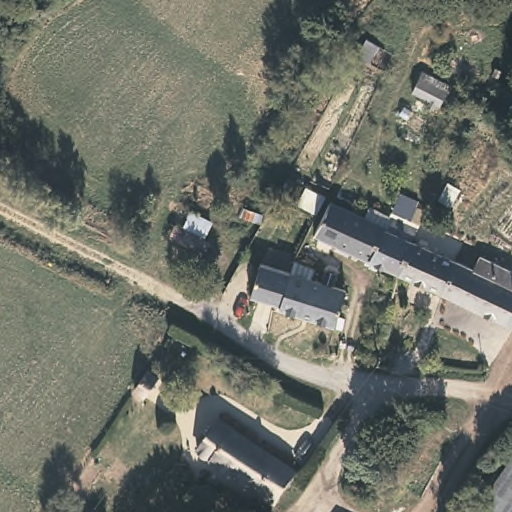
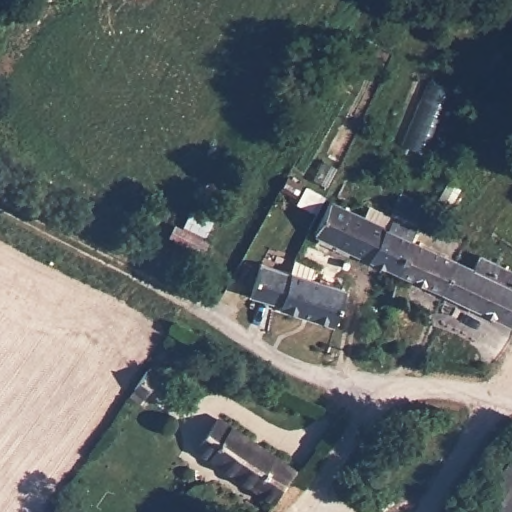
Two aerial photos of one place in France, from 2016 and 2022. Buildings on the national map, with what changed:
unchanged [(375,48),(366,66),(352,60),(363,41),(375,48)]
unchanged [(421,66),(451,83),(449,88),(441,104),(437,101),(434,105),(428,102),(431,98),(412,88),(419,71),(421,66)]
unchanged [(318,231),(334,199),(366,215),(372,203),(399,215),(402,208),(394,205),(404,186),(419,193),(416,200),(425,204),(414,224),(421,227),(414,238),(398,269),(318,231)]
unchanged [(324,197),(316,216),(299,208),(309,188),(324,197)]
unchanged [(209,220),(205,228),(185,218),(189,208),(209,220)]
unchanged [(209,239),(202,251),(174,235),(180,223),(209,239)]
unchanged [(456,258),(441,289),(398,269),(414,238),(456,258)]
unchanged [(456,258),(462,244),(481,253),(512,268),(512,322),(441,289),(456,258)]
unchanged [(308,262),(305,276),(341,286),(329,324),(276,308),(277,302),(246,293),(255,262),(284,270),(290,256),(308,262)]
unchanged [(158,376),(144,395),(135,388),(148,370),(158,376)]
unchanged [(296,472),(274,502),(201,451),(223,419),(296,472)]
unchanged [(512,460),(512,512),(475,512),(512,460)]

